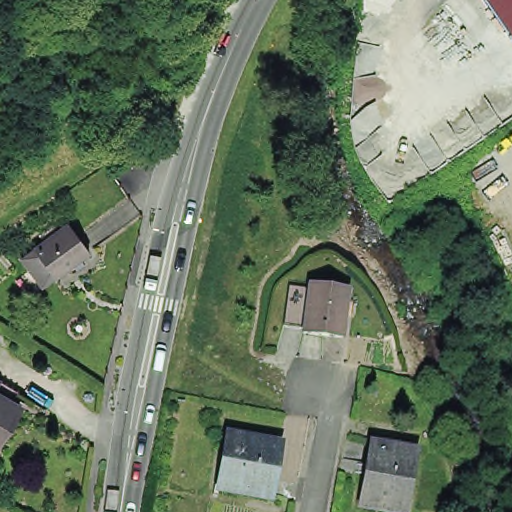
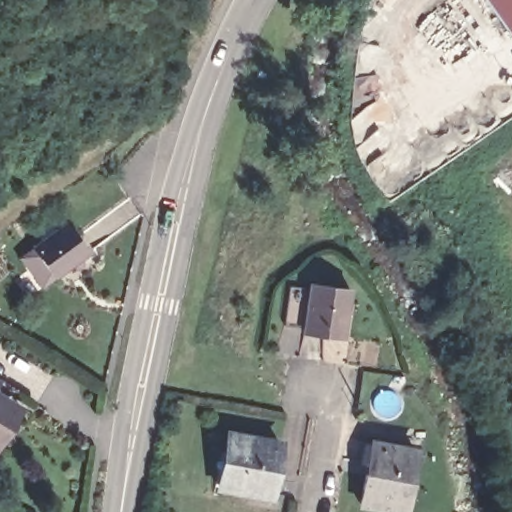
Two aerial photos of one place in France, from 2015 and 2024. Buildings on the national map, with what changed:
unchanged [(488,0),(512,0),(512,36),(488,0)]
unchanged [(20,254),(32,245),(66,219),(89,249),(55,275),(43,284),(20,254)]
unchanged [(319,291),(321,276),(356,284),(346,332),(311,324),(319,291)]
unchanged [(0,401),(0,373),(13,383),(4,395),(0,401)]
unchanged [(237,429),(284,440),(272,495),(225,484),(237,429)]
unchanged [(409,511),(364,501),(371,473),(375,474),(383,440),(423,449),(409,511)]

